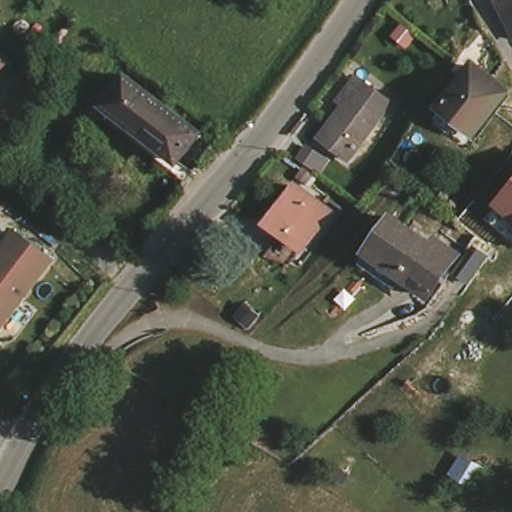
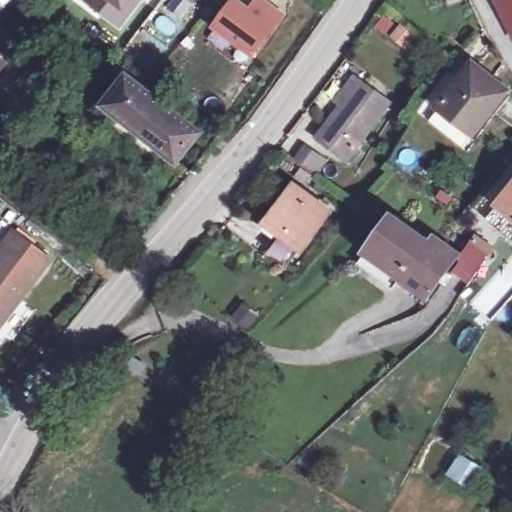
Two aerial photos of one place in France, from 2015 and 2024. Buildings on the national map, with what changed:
new [(118,29),(98,12),(106,2),(104,0),(142,0),(118,29)]
new [(231,0),(241,0),(248,5),(251,0),(268,0),(286,14),(252,58),(209,27),(231,0)]
unchanged [(506,4),(512,1),(512,25),(502,7),(506,4)]
unchanged [(8,69),(0,79),(0,62),(8,69)]
unchanged [(472,71),(505,97),(473,137),(441,110),(472,71)]
unchanged [(318,142),(341,109),(336,106),(355,77),(391,104),(347,164),(318,142)]
unchanged [(130,85),(201,142),(181,168),(110,111),(130,85)]
unchanged [(299,192),(332,217),(306,252),(286,238),(272,227),(299,192)]
unchanged [(512,197),(512,219),(500,210),(512,197)]
unchanged [(394,221),(430,247),(435,240),(454,256),(425,295),(401,277),(398,282),(366,258),(394,221)]
unchanged [(15,228),(50,256),(0,323),(0,248),(15,228)]

